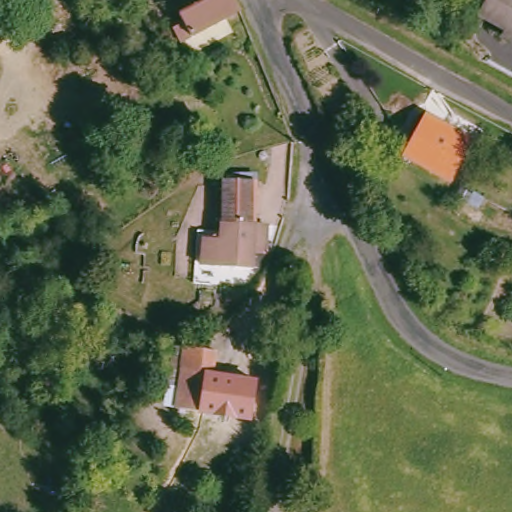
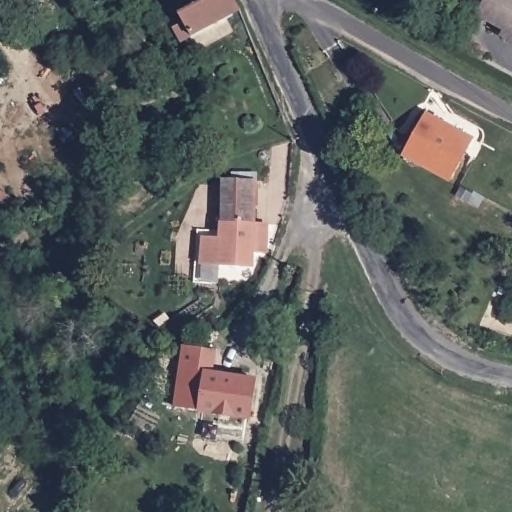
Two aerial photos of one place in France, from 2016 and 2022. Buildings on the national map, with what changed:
unchanged [(173,33),(183,27),(178,19),(215,0),(233,0),(240,14),(180,46),(173,33)]
unchanged [(481,0),(512,0),(512,35),(474,13),(481,0)]
unchanged [(400,149),(422,109),(438,118),(438,119),(466,134),(463,140),(444,174),(400,149)]
unchanged [(218,217),(219,176),(248,177),(249,218),(218,217)]
unchanged [(249,218),(250,218),(248,262),(198,260),(199,232),(218,233),(218,217),(249,218)]
unchanged [(180,346),(212,351),(208,374),(251,379),(245,418),(171,407),(180,346)]

